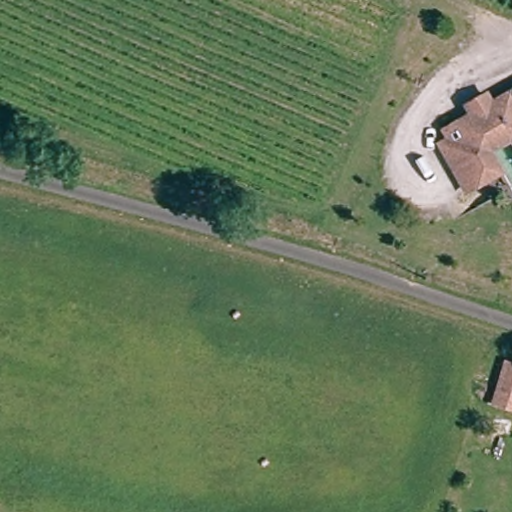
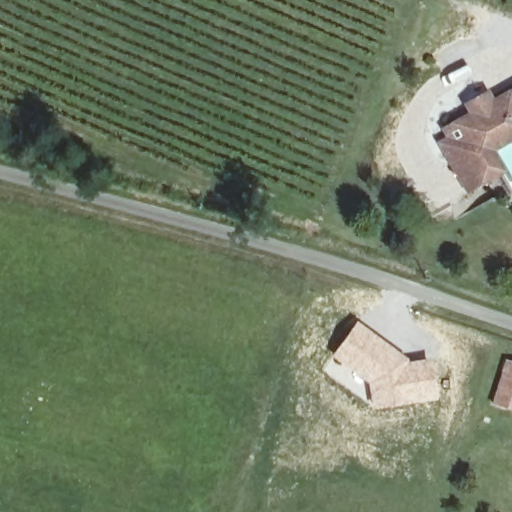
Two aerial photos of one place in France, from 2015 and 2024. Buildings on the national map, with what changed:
unchanged [(454,158),(443,137),(453,133),(448,123),(468,112),(471,116),(478,113),(470,98),(491,88),(495,96),(512,88),(512,114),(479,134),(498,169),(487,175),(469,185),(454,158)]
unchanged [(494,145),(506,165),(498,169),(479,134),(512,114),(512,136),(494,145)]
new [(357,320),(401,353),(408,360),(435,357),(439,399),(372,409),(366,383),(329,356),(357,320)]
new [(504,358),(512,361),(512,411),(490,405),(504,358)]

